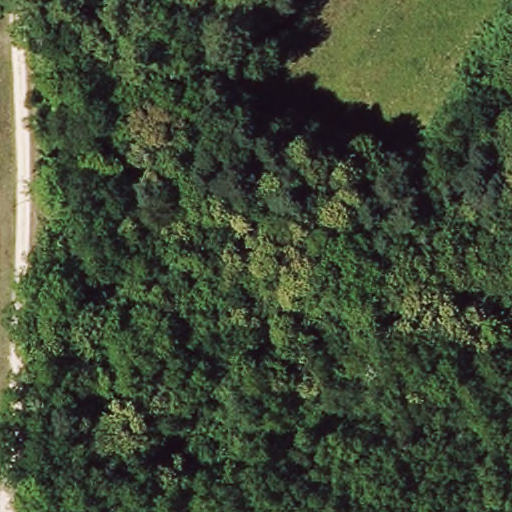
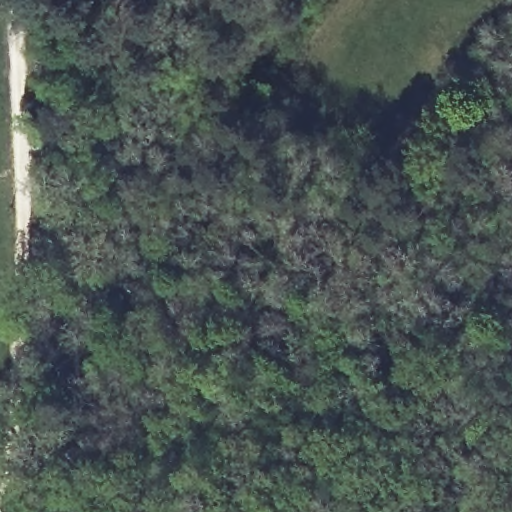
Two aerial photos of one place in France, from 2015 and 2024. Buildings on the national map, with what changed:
[]

